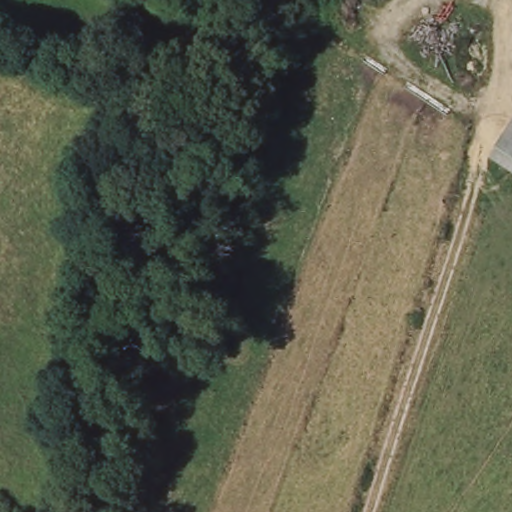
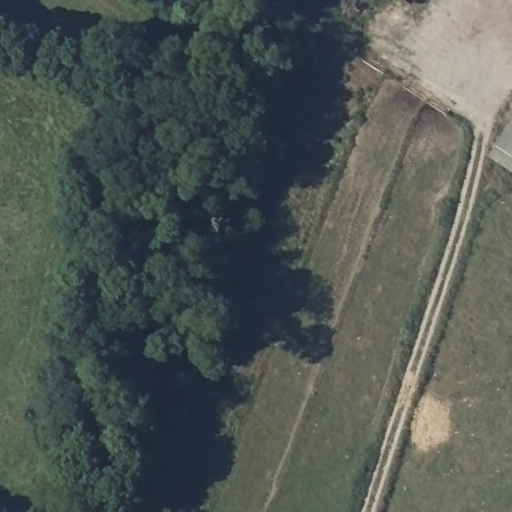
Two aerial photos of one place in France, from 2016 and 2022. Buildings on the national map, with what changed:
unchanged [(512,120),(512,175),(487,157),(512,120)]

